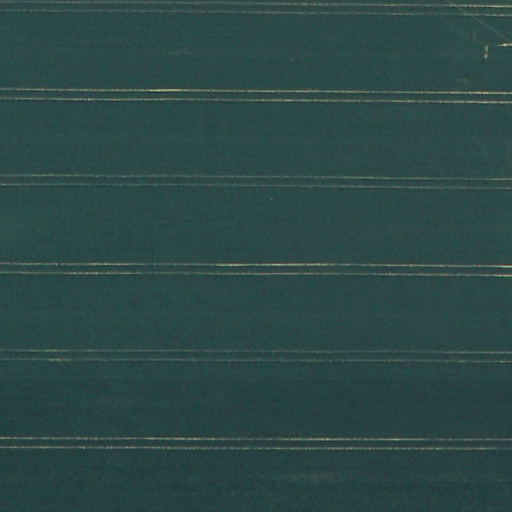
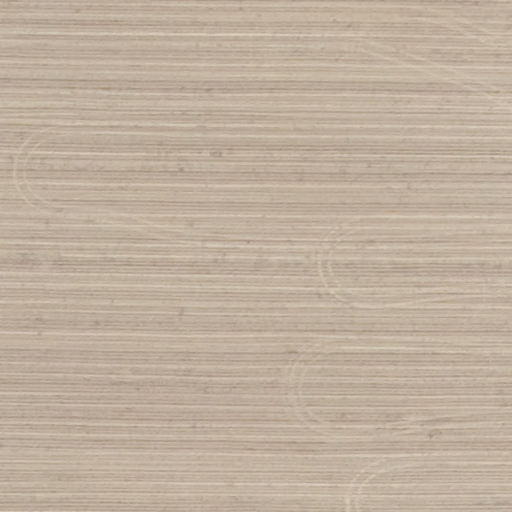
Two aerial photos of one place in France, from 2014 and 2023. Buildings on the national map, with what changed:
[]

